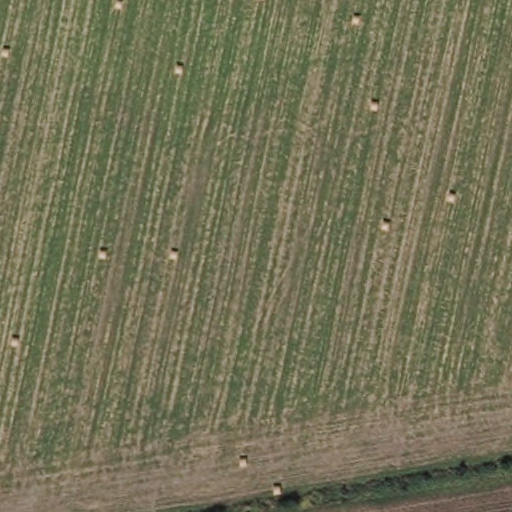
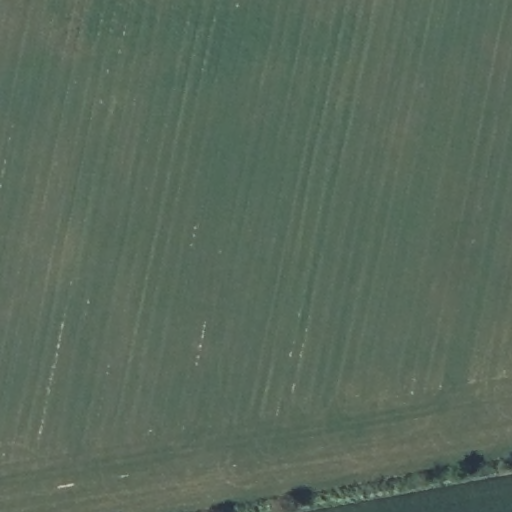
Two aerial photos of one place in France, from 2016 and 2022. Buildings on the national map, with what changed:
[]

